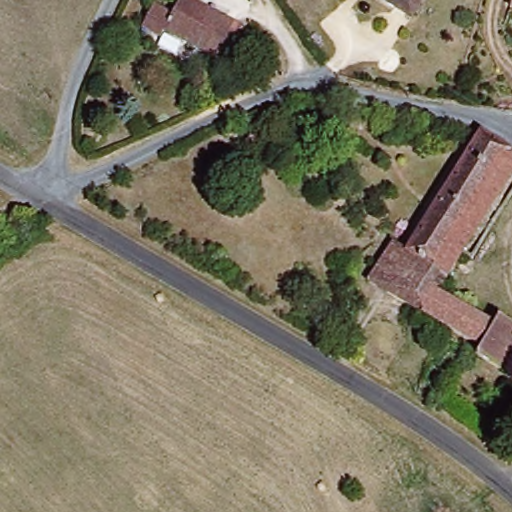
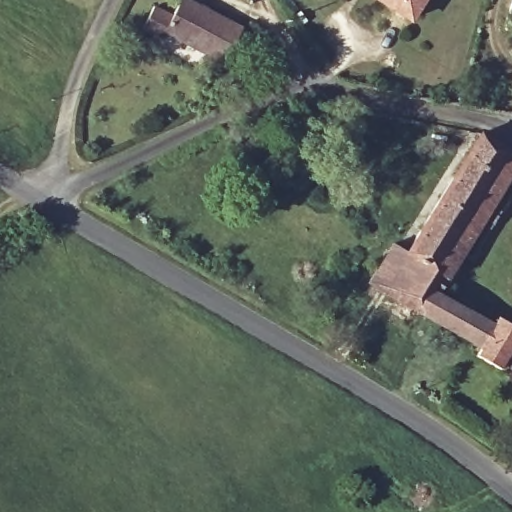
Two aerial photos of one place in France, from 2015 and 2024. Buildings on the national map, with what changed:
unchanged [(376,0),(424,0),(408,22),(376,0)]
unchanged [(512,0),(512,12),(508,10),(512,0)]
unchanged [(235,53),(228,65),(210,55),(198,75),(137,41),(155,9),(218,39),(222,32),(241,43),(257,51),(250,61),(235,53)]
unchanged [(252,104),(263,110),(246,140),(235,134),(252,104)]
unchanged [(422,314),(401,300),(369,281),(395,245),(408,250),(486,135),(512,155),(512,179),(502,194),(511,201),(489,234),(478,228),(462,253),(443,282),(436,291),(491,326),(495,320),(512,333),(512,360),(503,375),(477,360),(482,350),(422,314)]

